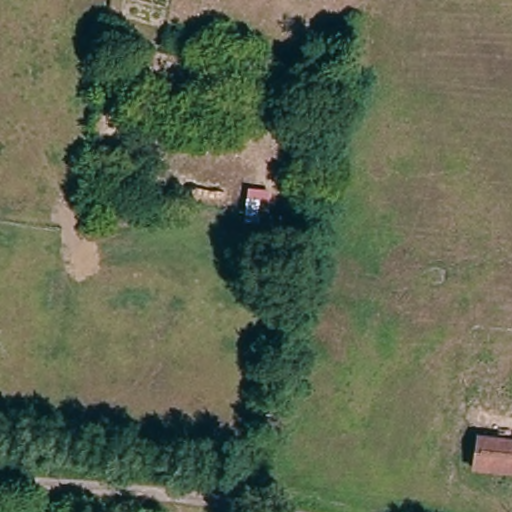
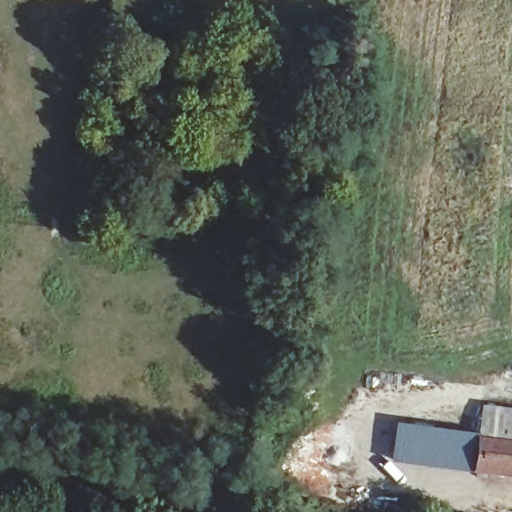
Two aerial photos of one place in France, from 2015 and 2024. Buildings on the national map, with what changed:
new [(475,472),(389,461),(395,422),(477,432),(481,405),(512,409),(512,448),(478,443),(475,472)]
unchanged [(512,478),(474,475),(478,443),(512,448),(512,478)]

